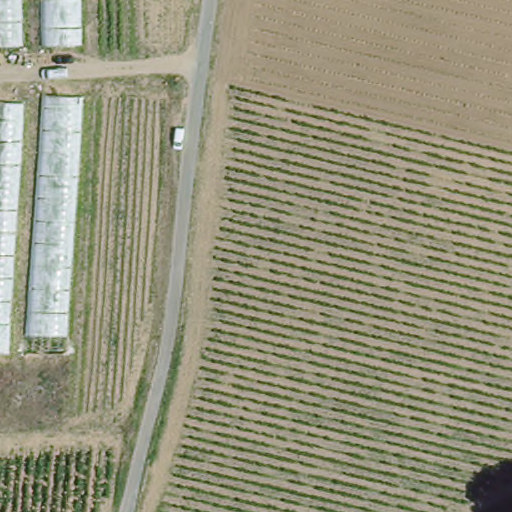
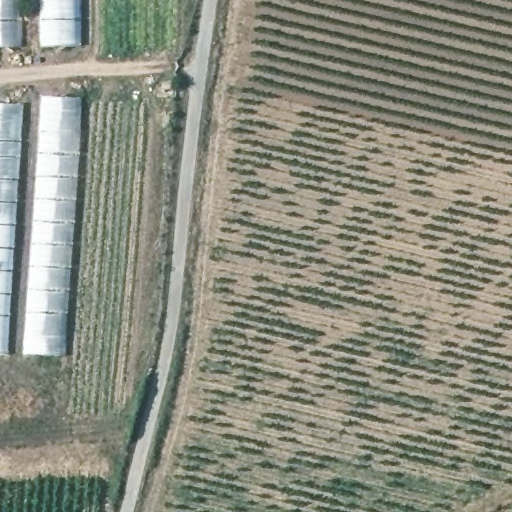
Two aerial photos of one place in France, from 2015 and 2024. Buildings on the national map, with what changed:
unchanged [(0,0),(16,0),(17,46),(0,47),(0,0)]
unchanged [(47,46),(47,0),(77,0),(78,45),(47,46)]
unchanged [(30,334),(47,96),(80,98),(60,337),(30,334)]
unchanged [(0,103),(20,105),(5,354),(0,353),(0,103)]

